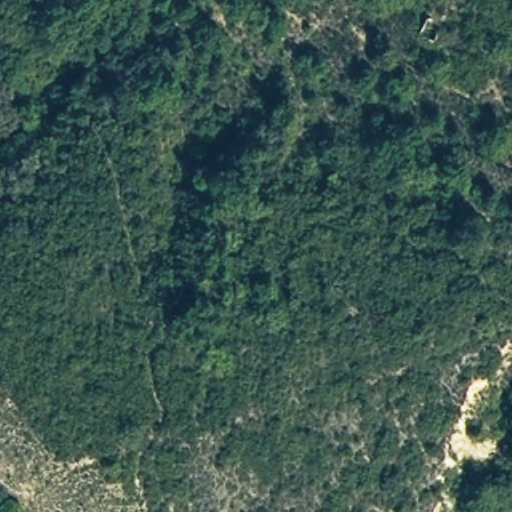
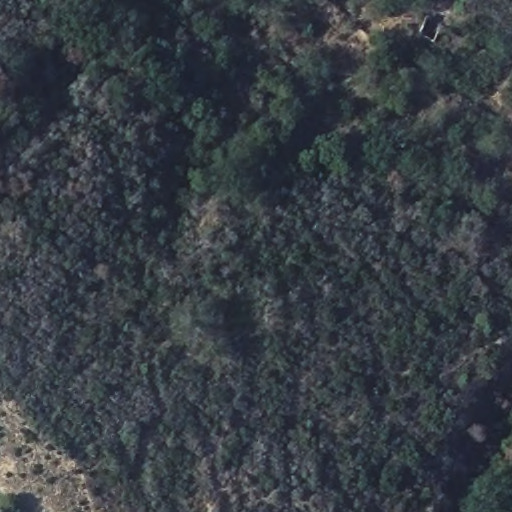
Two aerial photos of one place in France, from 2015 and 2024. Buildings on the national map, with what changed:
[]

